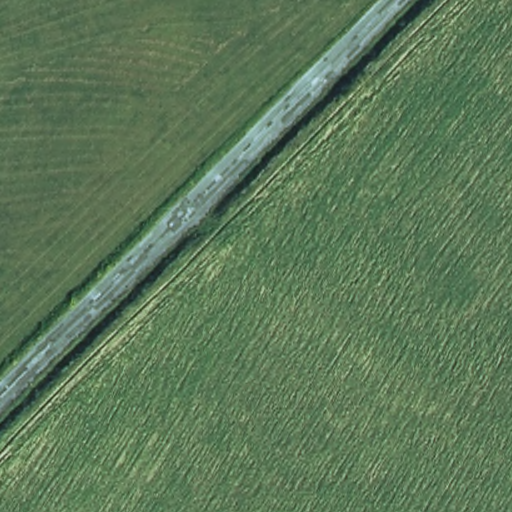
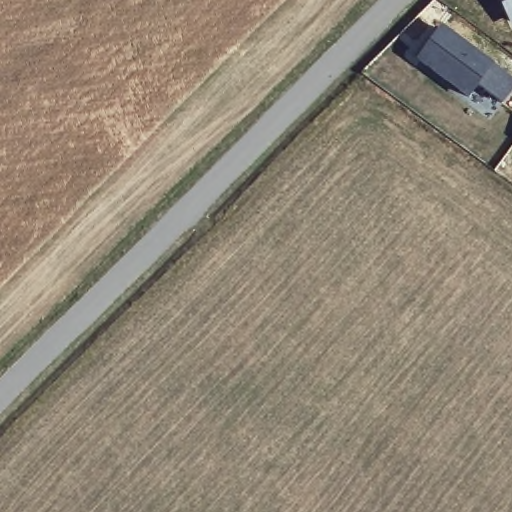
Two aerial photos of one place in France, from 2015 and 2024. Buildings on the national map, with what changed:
new [(512,0),(512,28),(499,0),(512,0)]
new [(512,94),(503,106),(478,90),(471,101),(417,62),(442,28),(495,65),(512,77),(512,94)]

